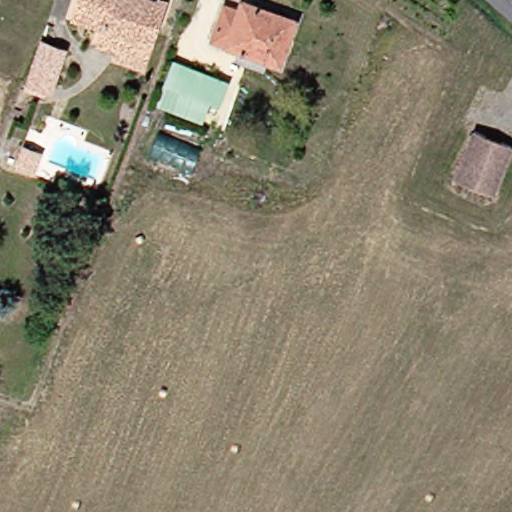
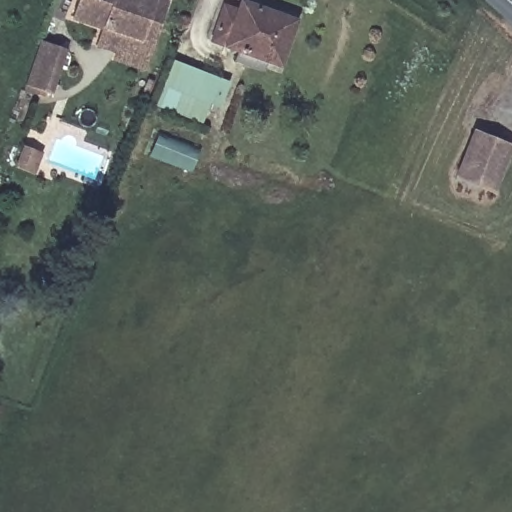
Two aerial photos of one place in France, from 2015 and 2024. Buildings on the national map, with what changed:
unchanged [(110,56),(115,42),(95,33),(98,23),(71,13),(77,0),(164,0),(156,25),(140,65),(110,56)]
unchanged [(250,18),(255,4),(303,22),(285,71),(270,65),(267,75),(238,66),(242,57),(218,46),(233,11),(250,18)]
unchanged [(51,92),(32,84),(41,62),(48,45),(67,53),(61,70),(56,81),(51,92)]
unchanged [(179,67),(226,84),(217,112),(214,118),(169,101),(171,96),(179,67)]
unchanged [(512,143),(512,152),(496,193),(458,178),(476,130),(512,143)]
unchanged [(38,153),(29,171),(12,164),(20,145),(38,153)]

